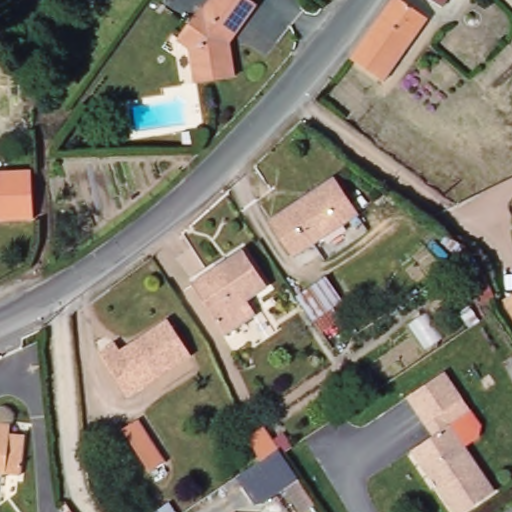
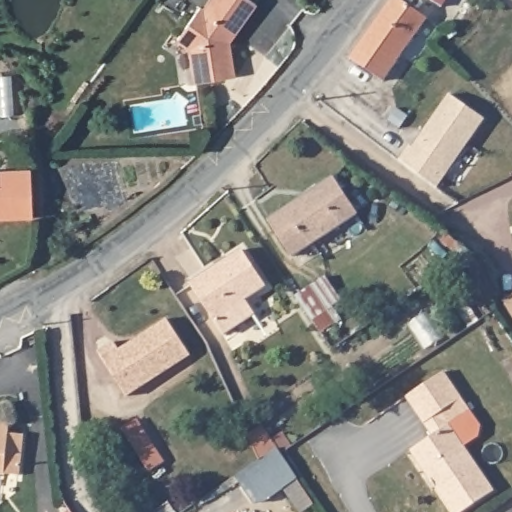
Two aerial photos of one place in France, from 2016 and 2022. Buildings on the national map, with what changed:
unchanged [(229,42),(234,77),(196,82),(190,48),(177,39),(201,7),(204,10),(211,0),(251,0),(256,3),(229,42)]
unchanged [(378,81),(345,57),(385,0),(398,0),(426,15),(378,81)]
unchanged [(442,7),(430,0),(446,0),(442,7)]
new [(411,150),(422,133),(448,97),(483,121),(436,190),(398,161),(408,147),(411,150)]
unchanged [(33,217),(0,219),(0,171),(31,169),(33,217)]
unchanged [(293,256),(270,219),(333,177),(357,214),(293,256)]
unchanged [(246,300),(255,315),(226,334),(192,282),(242,249),(267,286),(246,300)]
unchanged [(342,299),(332,305),(340,318),(321,331),(313,321),(297,296),(326,276),(342,299)]
unchanged [(512,297),(512,316),(504,302),(512,297)]
unchanged [(191,355),(127,396),(99,351),(115,341),(120,350),(167,319),(191,355)]
unchanged [(433,435),(407,396),(445,371),(462,398),(471,410),(450,424),(495,491),(463,512),(453,512),(411,450),(433,435)]
unchanged [(165,462),(150,471),(122,429),(137,419),(165,462)]
unchanged [(10,424),(9,433),(24,434),(22,457),(7,455),(5,474),(0,473),(0,423),(10,424)]
unchanged [(249,434),(263,426),(272,439),(282,433),(292,446),(286,451),(285,450),(284,449),(282,449),(280,449),(279,450),(278,449),(261,460),(249,434)]
unchanged [(300,512),(290,496),(284,488),(298,479),(304,487),(317,506),(321,512),(300,512)]
unchanged [(254,512),(231,512),(232,508),(254,512)]

